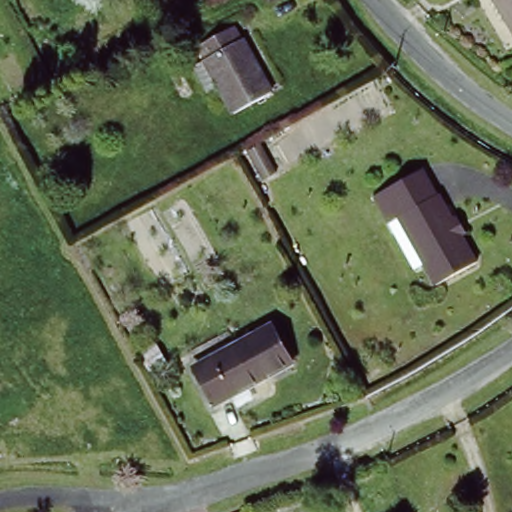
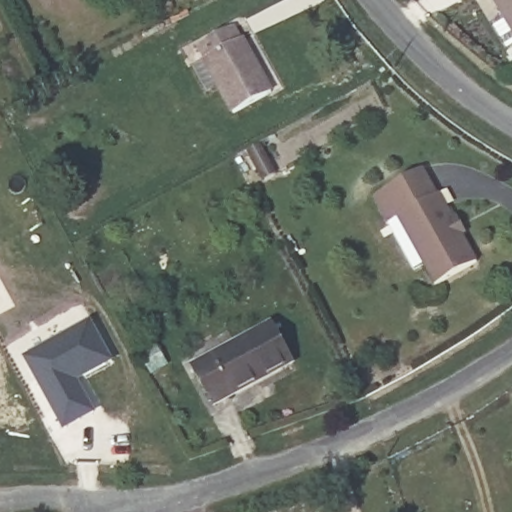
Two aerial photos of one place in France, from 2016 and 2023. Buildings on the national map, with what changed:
unchanged [(512,40),(489,0),(512,0),(512,40)]
unchanged [(212,86),(202,91),(187,65),(197,59),(191,50),(230,28),(267,91),(229,113),(212,86)]
unchanged [(245,148),(260,140),(278,173),(263,181),(245,148)]
unchanged [(433,287),(423,269),(428,266),(425,259),(414,265),(372,193),(420,166),(436,194),(437,192),(452,217),(455,215),(465,232),(462,234),(478,261),(433,287)]
new [(91,324),(112,361),(79,380),(97,412),(65,430),(26,361),(91,324)]
unchanged [(191,369),(268,324),(287,361),(211,406),(191,369)]

